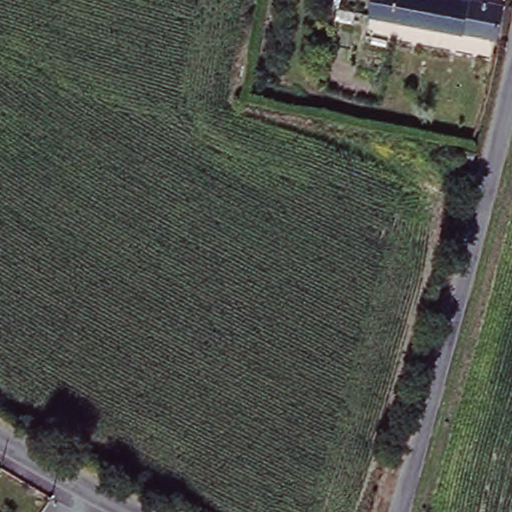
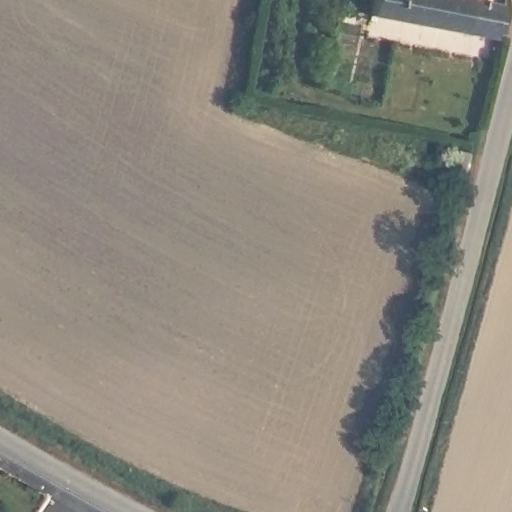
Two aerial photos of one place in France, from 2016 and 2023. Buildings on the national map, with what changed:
unchanged [(363,15),(364,12),(366,0),(471,0),(499,5),(492,39),(363,15)]
unchanged [(465,149),(477,152),(471,172),(460,168),(465,149)]

